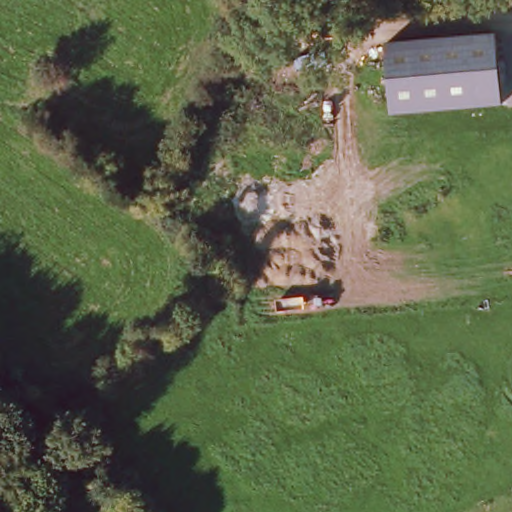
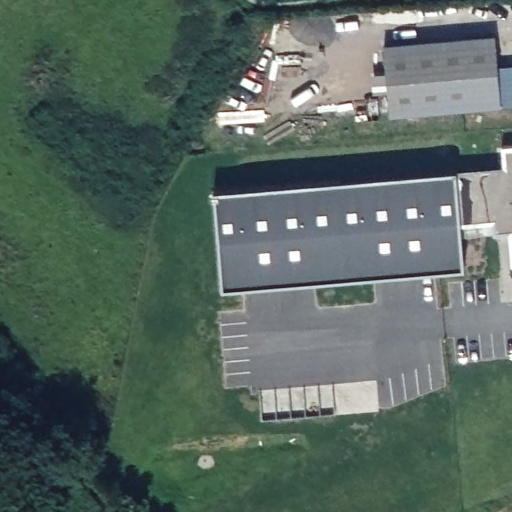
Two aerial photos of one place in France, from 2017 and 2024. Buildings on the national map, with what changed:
unchanged [(383,42),(495,33),(498,83),(500,103),(389,113),(388,107),(383,42)]
new [(465,268),(222,287),(221,264),(215,188),(347,178),(505,165),(502,146),(512,145),(512,265),(510,231),(495,232),(462,235),(465,268)]

